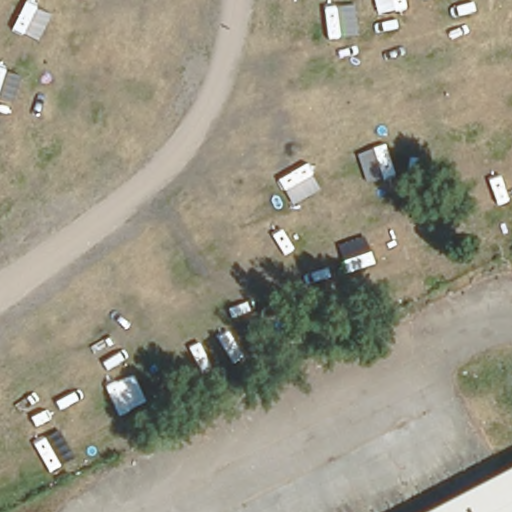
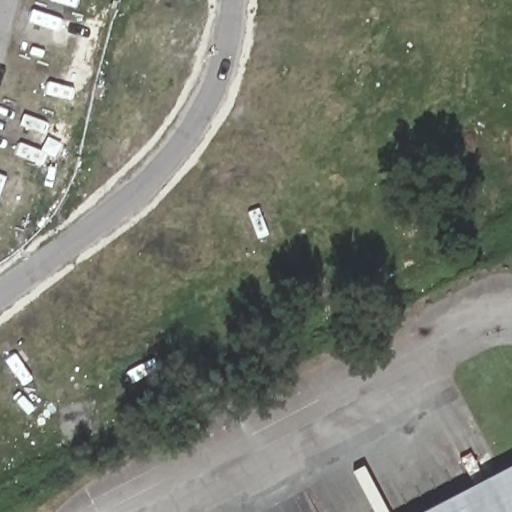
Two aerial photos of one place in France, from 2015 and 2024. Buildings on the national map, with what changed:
unchanged [(435,512),(512,472),(512,512),(435,512)]

